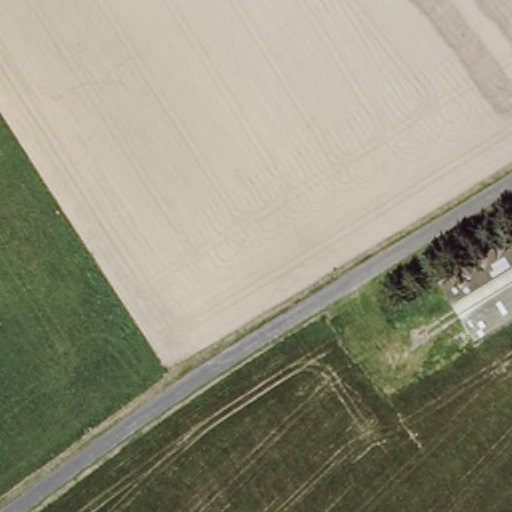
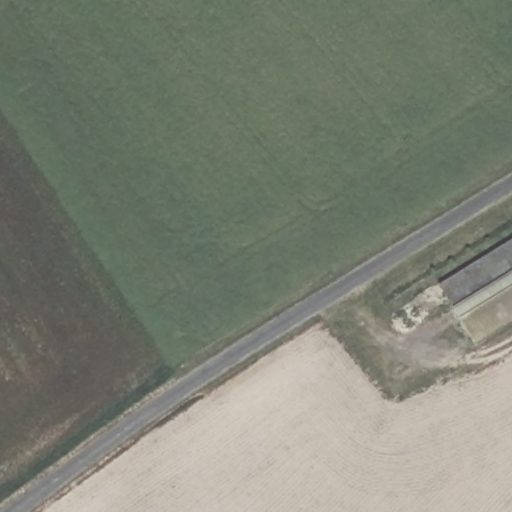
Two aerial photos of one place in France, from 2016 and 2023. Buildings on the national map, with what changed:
unchanged [(443,286),(512,244),(512,319),(477,341),(443,286)]

